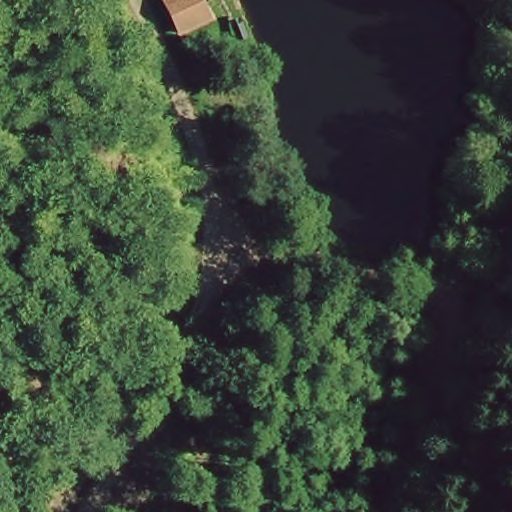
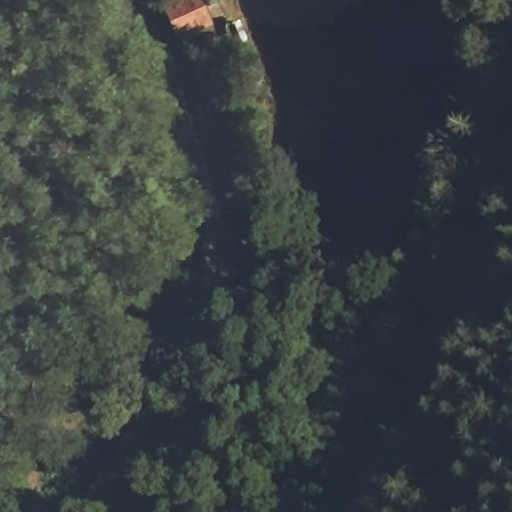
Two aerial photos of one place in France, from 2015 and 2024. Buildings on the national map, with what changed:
unchanged [(212,21),(179,37),(162,0),(201,0),(212,21)]

